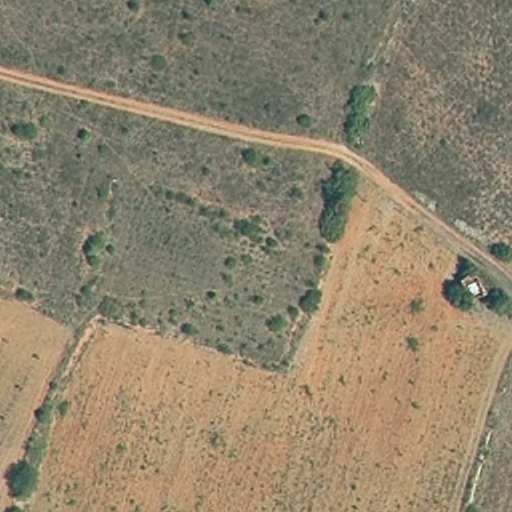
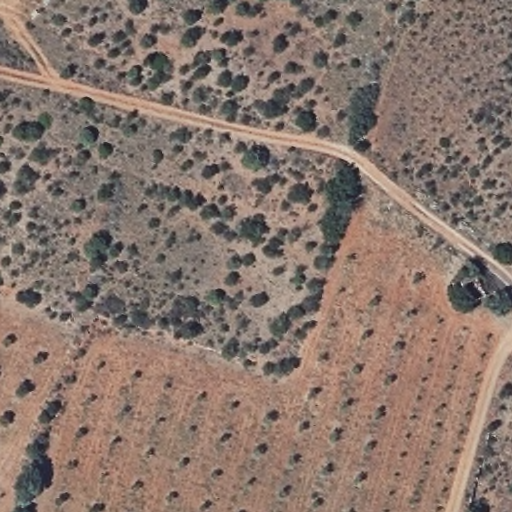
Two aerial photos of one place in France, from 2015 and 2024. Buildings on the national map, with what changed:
unchanged [(460,277),(479,270),(487,295),(472,302),(460,277)]

